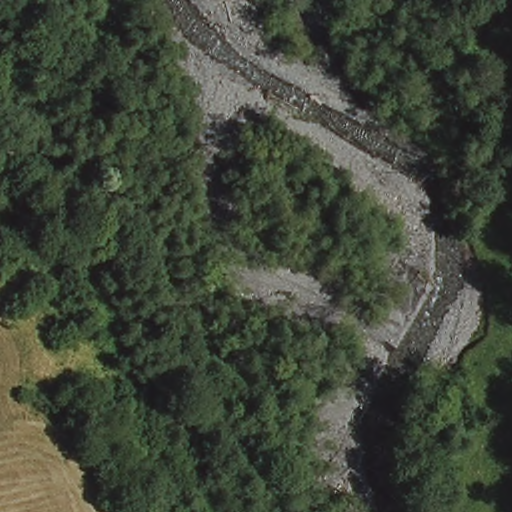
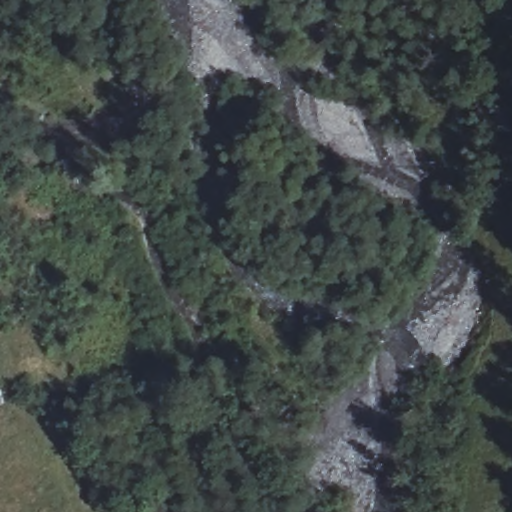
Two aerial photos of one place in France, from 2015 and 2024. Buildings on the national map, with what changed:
[]

